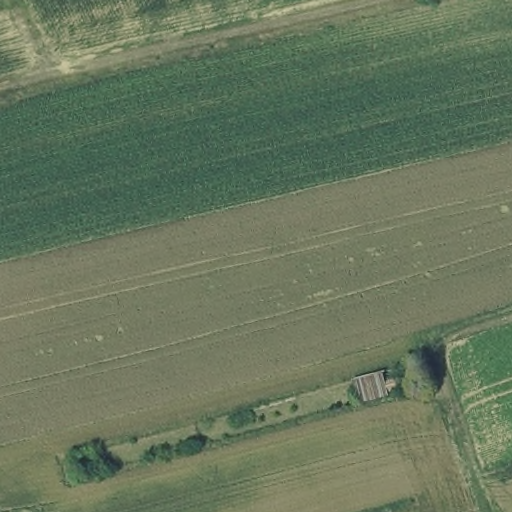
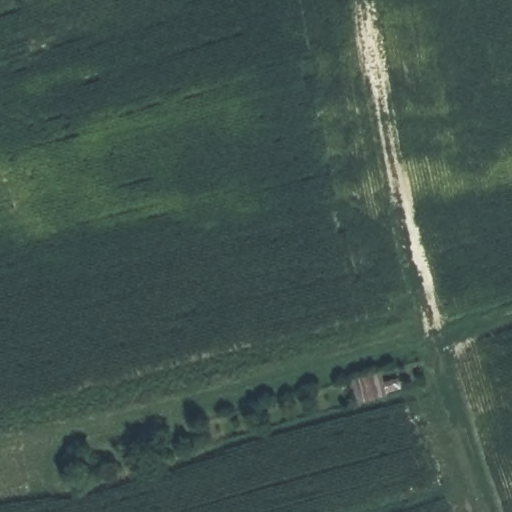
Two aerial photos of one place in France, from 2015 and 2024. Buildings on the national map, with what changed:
unchanged [(351,411),(345,379),(385,369),(392,396),(351,411)]

